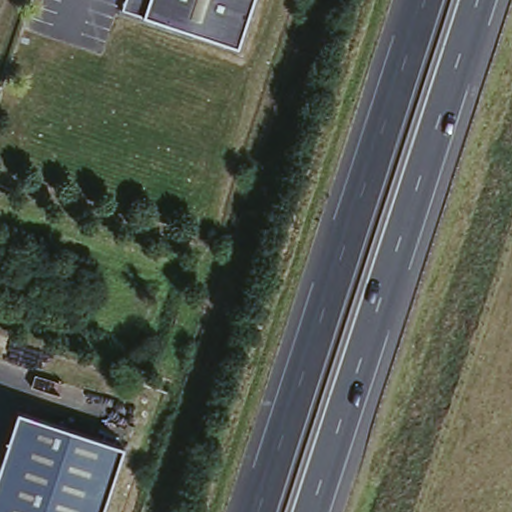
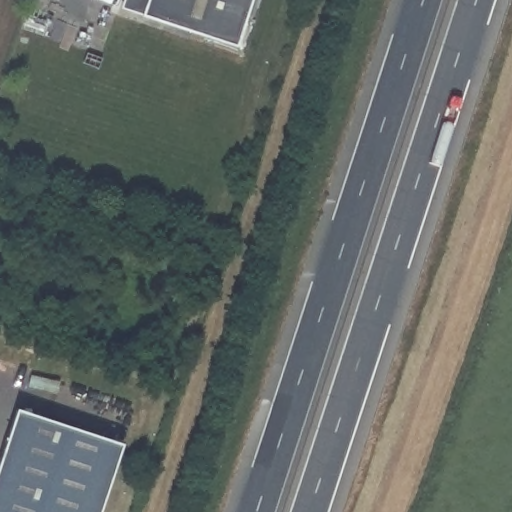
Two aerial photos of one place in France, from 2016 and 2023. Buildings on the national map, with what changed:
unchanged [(124,14),(128,0),(149,0),(142,20),(124,14)]
unchanged [(142,20),(149,0),(249,0),(232,50),(142,20)]
unchanged [(99,438),(100,433),(112,437),(111,442),(120,445),(99,512),(0,512),(0,455),(14,411),(99,438)]

